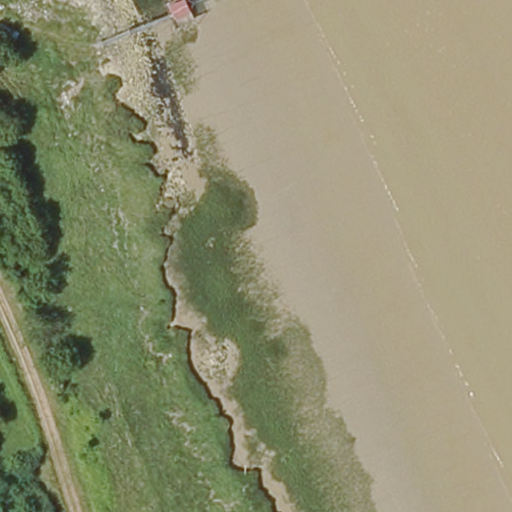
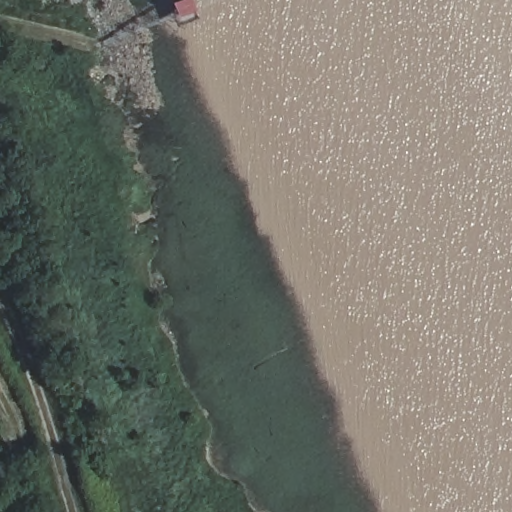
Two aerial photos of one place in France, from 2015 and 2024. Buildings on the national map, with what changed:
[]

